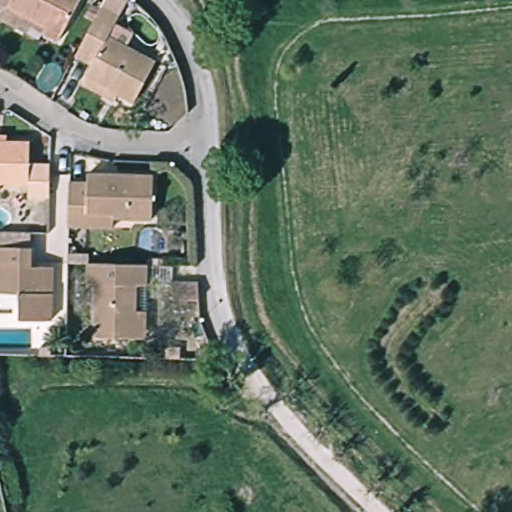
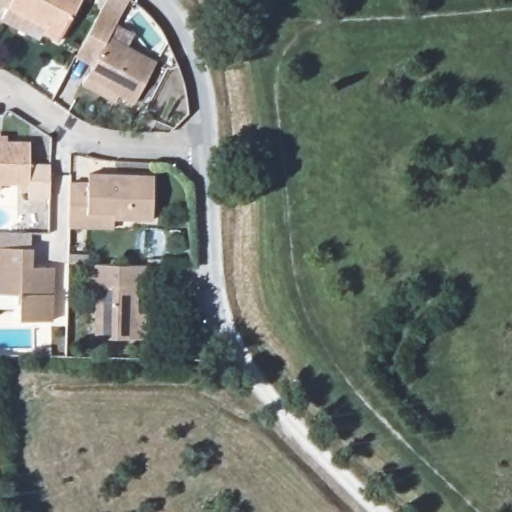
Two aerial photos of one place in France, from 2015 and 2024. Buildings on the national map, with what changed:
unchanged [(44,29),(47,23),(46,22),(40,36),(11,22),(17,9),(21,0),(82,0),(63,38),(44,29)]
unchanged [(114,20),(105,36),(153,61),(131,102),(82,78),(89,66),(73,58),(98,10),(114,20)]
unchanged [(50,200),(27,198),(27,187),(0,185),(0,141),(31,143),(31,163),(52,164),(50,200)]
unchanged [(97,229),(73,227),(74,183),(90,185),(91,171),(155,176),(154,218),(118,216),(116,230),(97,229)]
unchanged [(31,249),(30,262),(51,263),(48,321),(13,317),(15,294),(0,292),(0,247),(31,249)]
unchanged [(143,285),(132,284),(130,333),(89,331),(92,281),(84,281),(85,264),(145,266),(143,285)]

